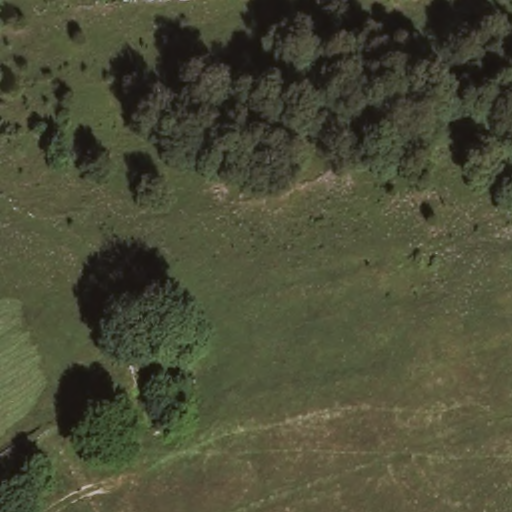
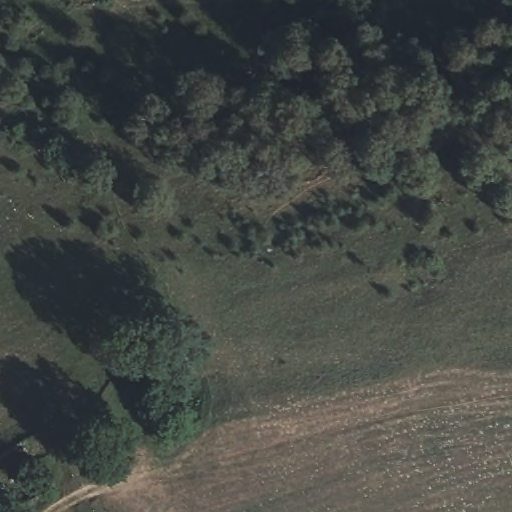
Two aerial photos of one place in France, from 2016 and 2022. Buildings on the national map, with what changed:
unchanged [(124,371),(140,366),(155,362),(171,415),(139,424),(124,371)]

